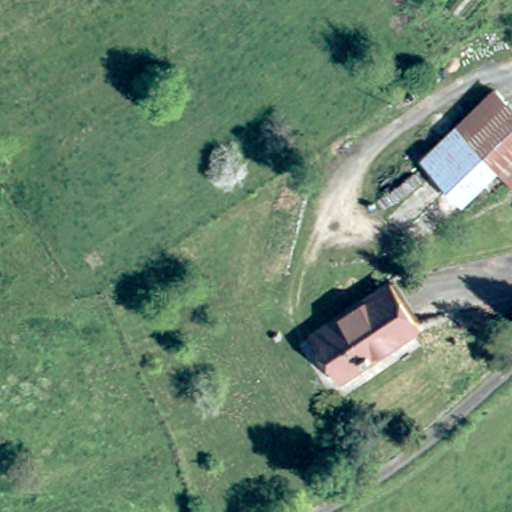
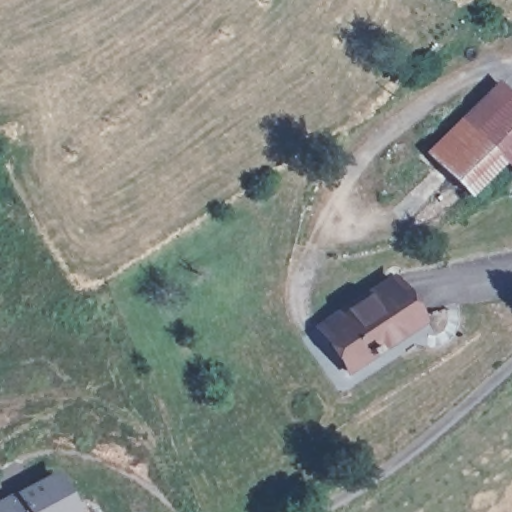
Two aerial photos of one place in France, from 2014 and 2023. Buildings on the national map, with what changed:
unchanged [(503,168),(465,201),(426,163),(468,122),(498,93),(510,104),(512,106),(512,177),(509,174),(503,168)]
unchanged [(392,355),(358,377),(329,333),(402,285),(428,325),(391,350),(392,355)]
new [(16,489),(57,469),(79,512),(0,512),(0,499),(16,489)]

